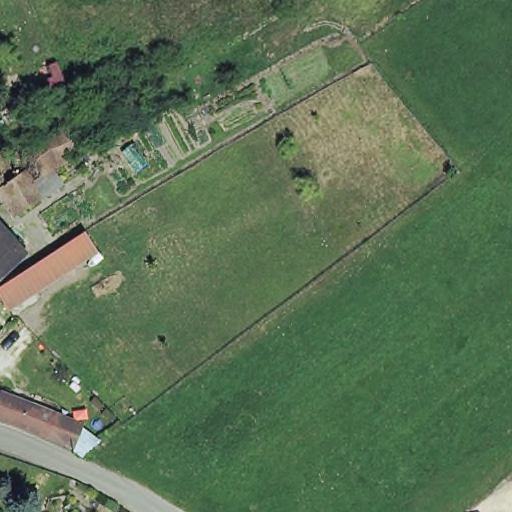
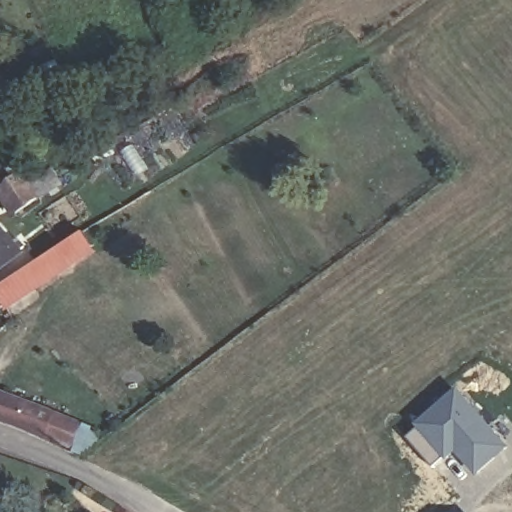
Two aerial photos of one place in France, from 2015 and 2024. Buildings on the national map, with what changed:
unchanged [(81,153),(60,162),(66,182),(16,214),(0,191),(0,188),(27,170),(18,156),(73,134),(81,153)]
unchanged [(0,180),(0,178),(1,179),(0,180)]
unchanged [(0,269),(0,218),(27,246),(0,269)]
unchanged [(102,252),(11,311),(0,292),(0,282),(87,225),(102,252)]
unchanged [(0,340),(0,330),(5,335),(0,340)]
new [(456,386),(510,448),(475,478),(452,454),(445,460),(433,469),(404,434),(414,424),(456,386)]
unchanged [(74,451),(0,422),(0,388),(86,415),(74,451)]

